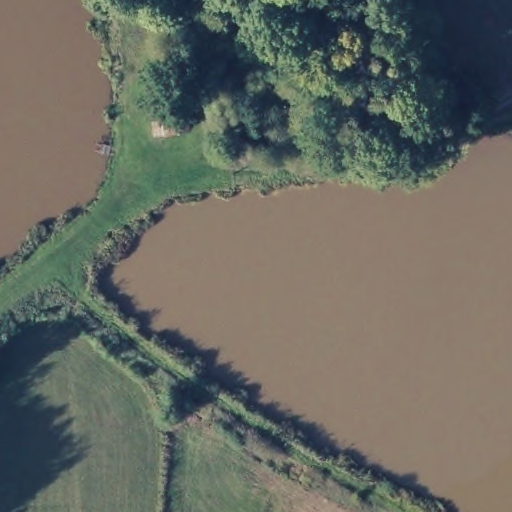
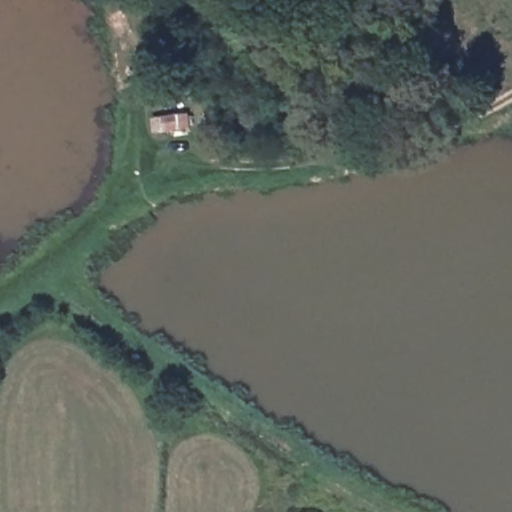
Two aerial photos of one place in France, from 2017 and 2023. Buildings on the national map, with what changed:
unchanged [(119,0),(132,0),(143,26),(128,32),(114,2),(119,0)]
unchanged [(173,111),(178,125),(166,130),(160,115),(173,111)]

